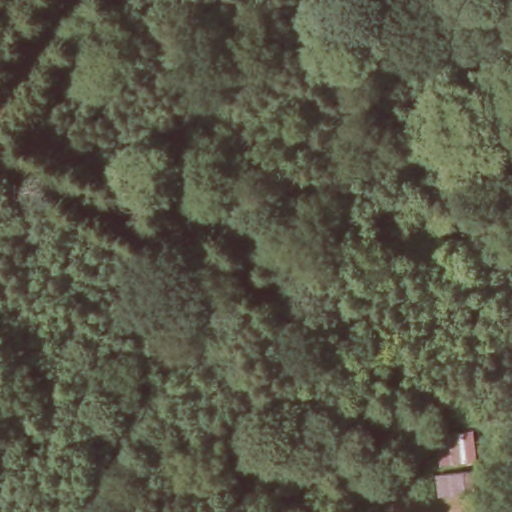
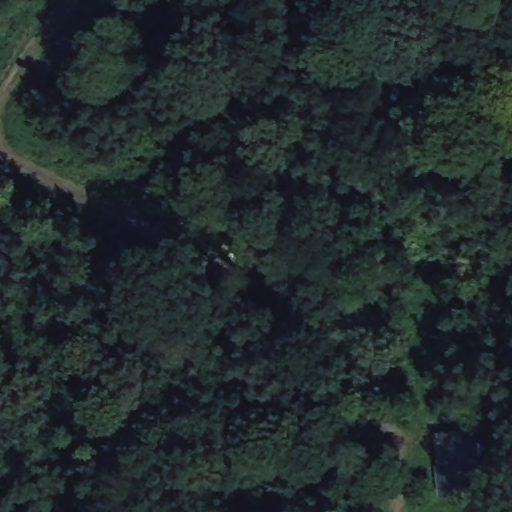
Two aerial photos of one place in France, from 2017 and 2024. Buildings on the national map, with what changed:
unchanged [(455,470),(460,489),(437,494),(433,474),(455,470)]

